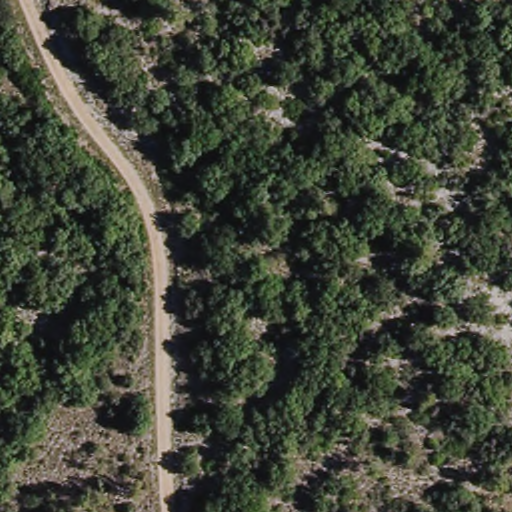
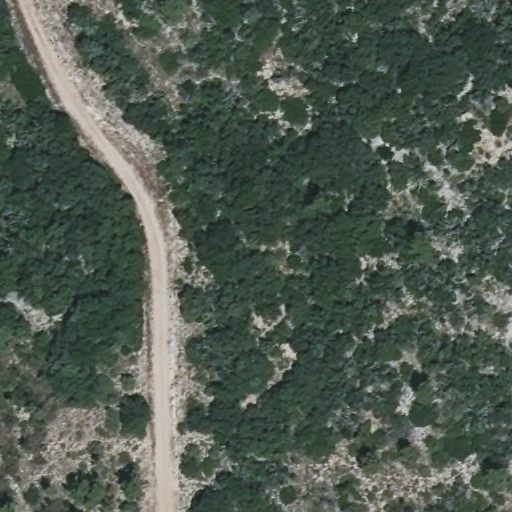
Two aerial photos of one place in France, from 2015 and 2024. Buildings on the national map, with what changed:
[]

